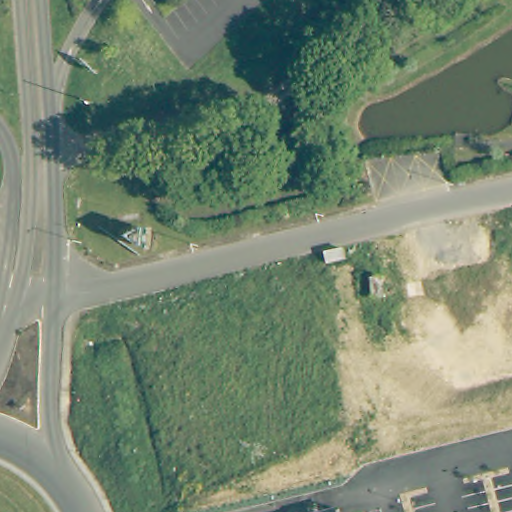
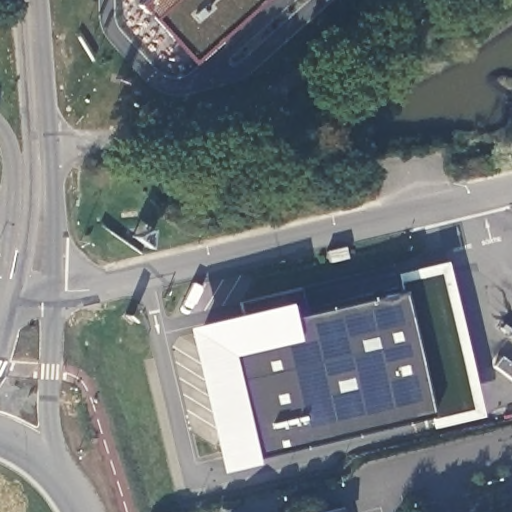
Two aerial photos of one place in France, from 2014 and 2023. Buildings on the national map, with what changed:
new [(283,302),(280,293),(299,289),(304,312),(398,290),(393,273),(443,261),(482,415),(431,428),(427,413),(251,454),(253,461),(216,470),(182,327),(283,302)]
demolished [(372,275),(382,274),(384,274),(386,294),(382,294),(374,295),(372,275)]
demolished [(431,396),(484,398),(487,462),(433,465),(431,396)]
unchanged [(341,512),(326,512),(340,509),(341,512)]

